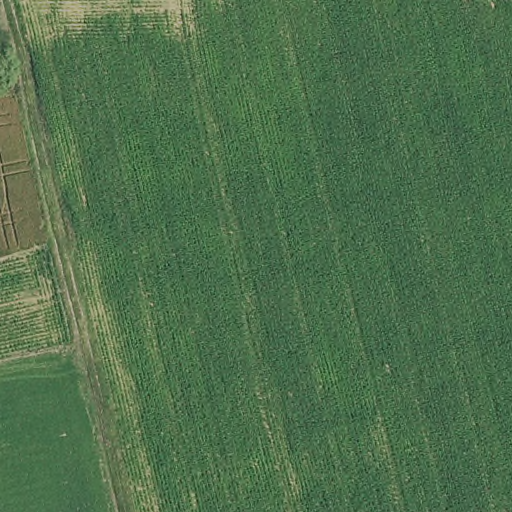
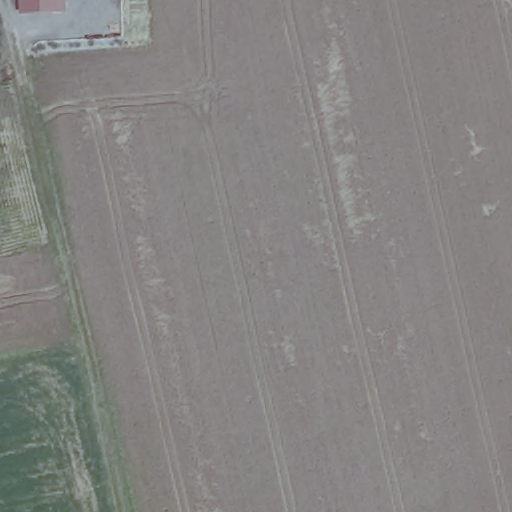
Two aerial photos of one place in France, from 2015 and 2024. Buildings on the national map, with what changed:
new [(65,14),(19,16),(18,0),(64,0),(65,14)]

